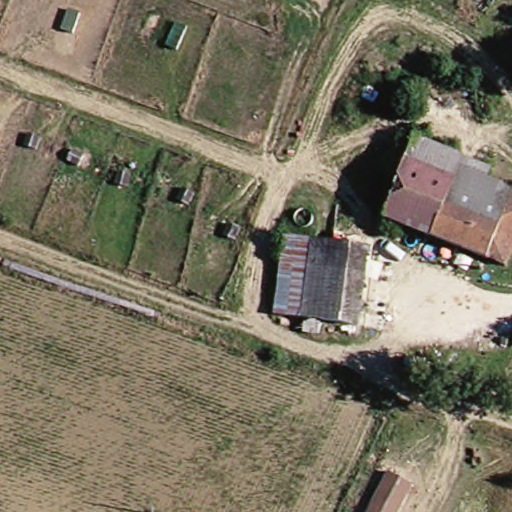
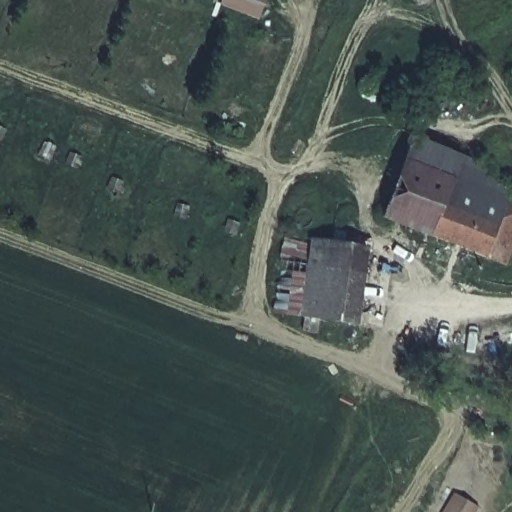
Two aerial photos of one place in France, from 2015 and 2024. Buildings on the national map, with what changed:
new [(212,0),(265,0),(258,18),(212,0)]
unchanged [(391,220),(423,140),(476,159),(472,169),(490,176),(512,185),(512,214),(495,260),(391,220)]
unchanged [(512,214),(512,267),(495,260),(512,214)]
unchanged [(362,324),(279,311),(291,236),(373,249),(362,324)]
new [(453,491),(478,505),(474,512),(441,512),(453,491)]

